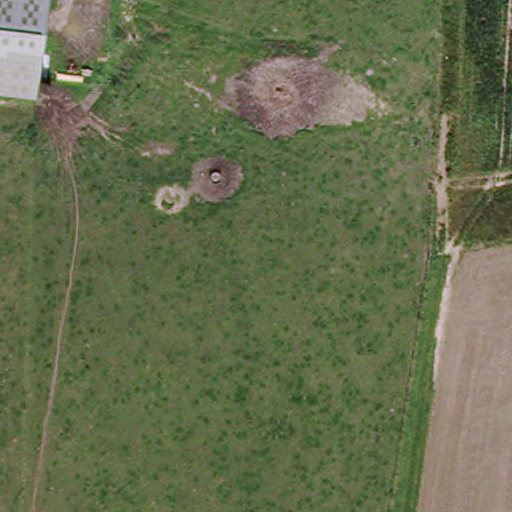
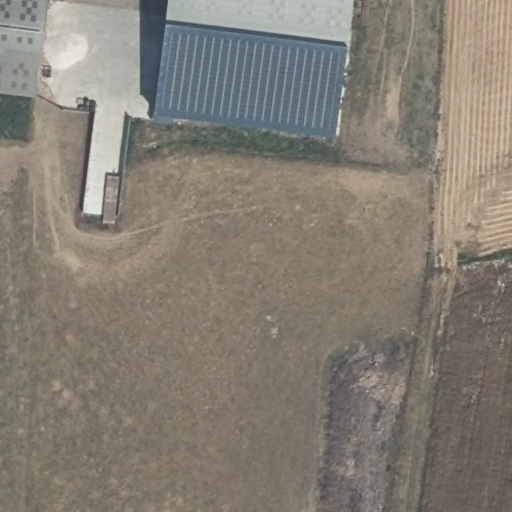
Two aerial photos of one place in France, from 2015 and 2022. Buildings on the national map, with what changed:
unchanged [(0,87),(0,0),(42,0),(32,91),(0,87)]
new [(335,138),(156,115),(170,0),(351,0),(335,138)]

